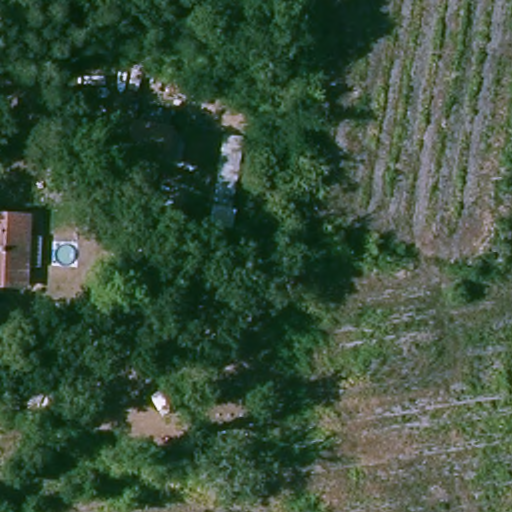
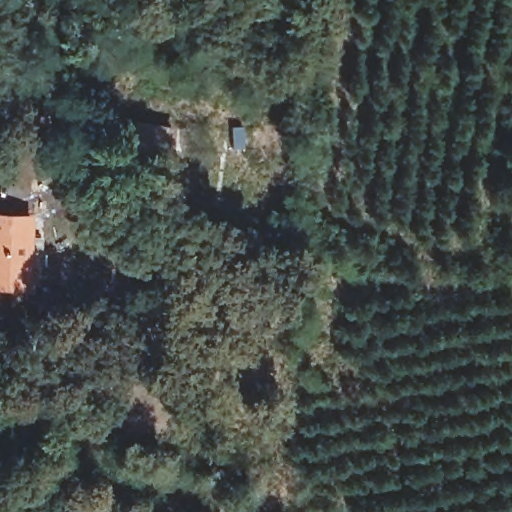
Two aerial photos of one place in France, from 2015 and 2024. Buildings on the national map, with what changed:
unchanged [(19,116),(23,84),(44,88),(38,119),(19,116)]
unchanged [(168,172),(133,166),(137,135),(122,132),(124,117),(174,126),(168,172)]
unchanged [(0,284),(0,213),(34,218),(25,287),(0,284)]

